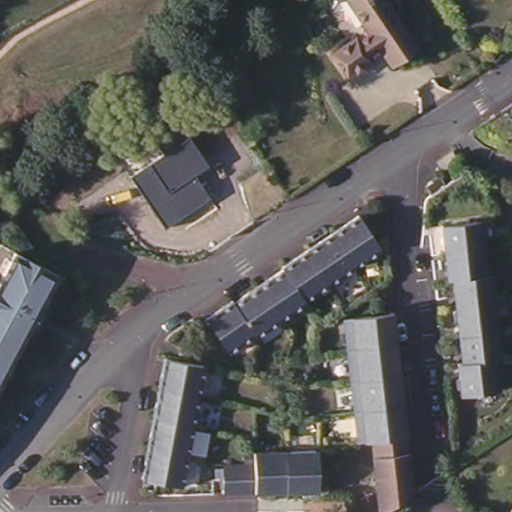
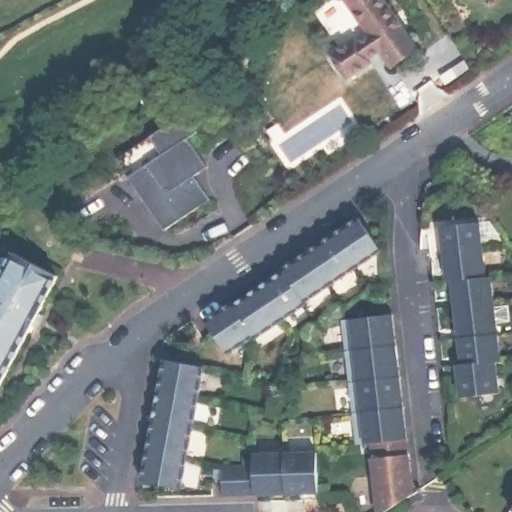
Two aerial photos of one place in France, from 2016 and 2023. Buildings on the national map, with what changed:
unchanged [(380,54),(345,77),(324,49),(360,27),(342,2),(338,5),(335,0),(385,0),(417,45),(390,67),(380,54)]
unchanged [(211,167),(196,177),(211,199),(166,230),(120,162),(178,119),(211,167)]
unchanged [(450,152),(456,162),(440,172),(435,164),(450,152)]
unchanged [(261,283),(286,266),(285,264),(336,230),(361,212),(365,217),(366,215),(372,224),(370,225),(385,246),(359,263),(308,298),(310,300),(285,317),(275,323),(258,285),(261,283)]
unchanged [(488,217),(491,245),(494,272),(499,272),(505,328),(509,357),(504,357),(507,388),(469,392),(468,388),(465,386),(465,377),(467,375),(465,360),(470,359),(467,332),(466,320),(463,317),(462,310),(465,307),(464,304),(461,276),(456,277),(453,249),(450,222),(488,217)]
unchanged [(65,272),(45,310),(50,312),(45,322),(40,320),(4,388),(0,395),(0,237),(65,272)]
unchanged [(235,297),(236,300),(258,285),(275,323),(260,334),(231,350),(217,328),(215,330),(210,322),(211,320),(209,316),(235,297)]
unchanged [(386,314),(395,312),(396,315),(401,315),(405,346),(408,377),(411,407),(415,439),(421,493),(393,512),(387,512),(380,458),(381,458),(380,443),(365,444),(361,413),(358,382),(355,351),(351,320),(386,316),(386,314)]
unchanged [(172,361),(173,358),(182,361),(182,363),(207,367),(202,398),(196,428),(190,458),(185,488),(160,484),(159,487),(149,485),(150,482),(145,482),(150,451),(156,421),(162,391),(167,360),(172,361)]
unchanged [(4,399),(0,404),(0,397),(4,399)]
unchanged [(230,486),(228,486),(228,476),(230,476),(230,462),(262,462),(262,450),(293,448),(325,448),(327,488),(295,489),(266,490),(263,490),(231,491),(230,486)]
unchanged [(512,512),(505,512),(512,499),(512,512)]

